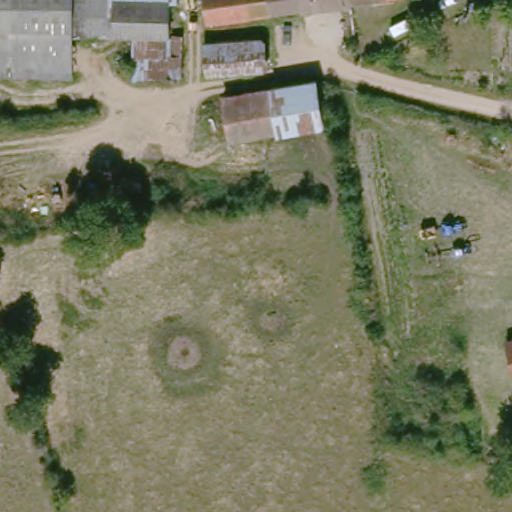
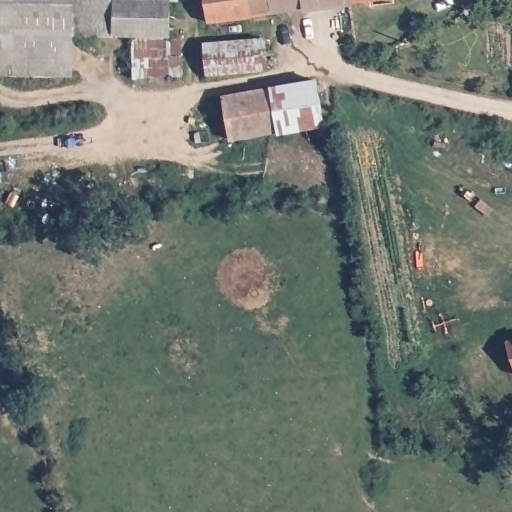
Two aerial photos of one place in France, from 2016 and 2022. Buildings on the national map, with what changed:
unchanged [(67,35),(0,35),(0,0),(69,0),(67,35)]
unchanged [(165,35),(131,35),(67,35),(69,0),(166,0),(165,35)]
unchanged [(347,6),(205,23),(202,0),(346,0),(347,6)]
unchanged [(383,1),(347,6),(346,0),(383,0),(383,1)]
unchanged [(67,75),(0,75),(0,35),(67,35),(67,75)]
unchanged [(165,35),(177,35),(177,76),(132,76),(131,35),(165,35)]
unchanged [(256,37),(260,69),(202,74),(198,44),(256,37)]
unchanged [(319,83),(323,125),(228,138),(222,95),(319,82),(319,83)]
unchanged [(512,339),(512,367),(504,342),(512,339)]

